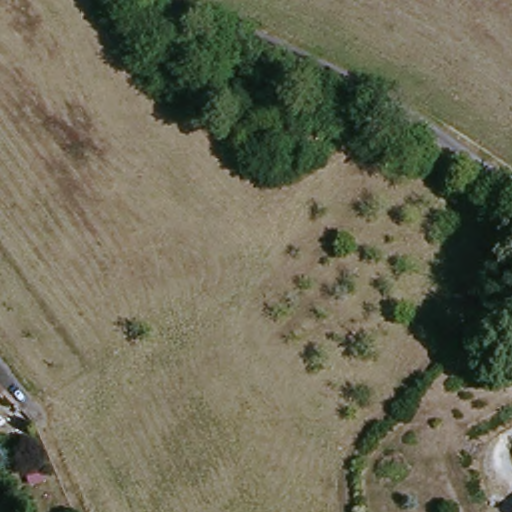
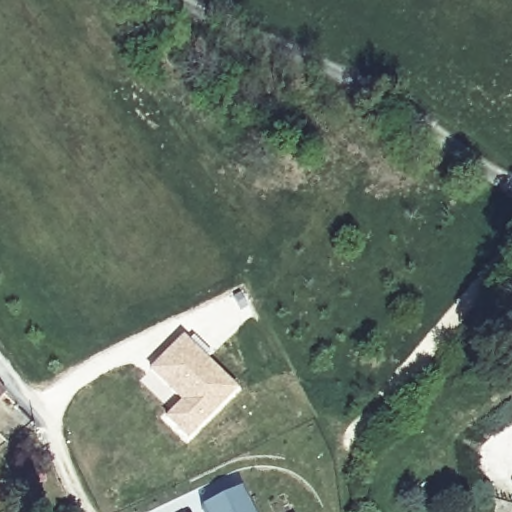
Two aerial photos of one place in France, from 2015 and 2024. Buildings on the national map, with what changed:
new [(184,333),(238,391),(188,442),(163,417),(180,400),(149,367),(184,333)]
unchanged [(0,389),(6,398),(0,403),(0,389)]
new [(245,488),(255,512),(208,512),(205,505),(245,488)]

